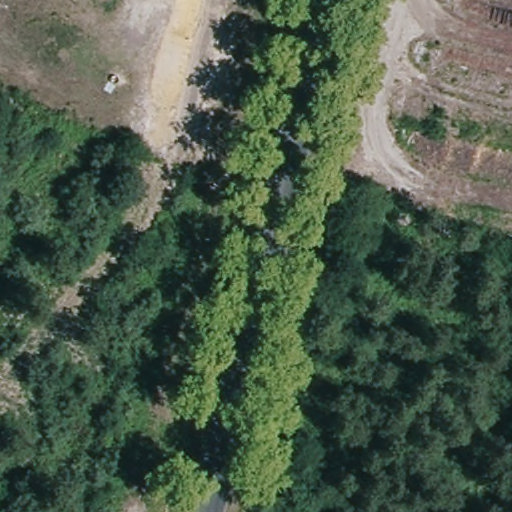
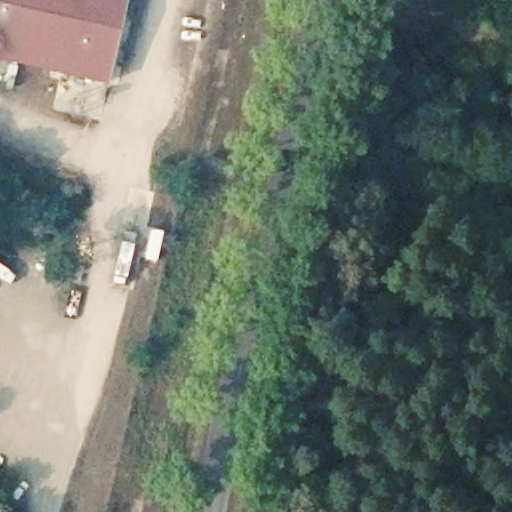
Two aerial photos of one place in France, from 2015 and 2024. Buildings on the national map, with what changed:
new [(110,80),(0,55),(0,0),(128,0),(110,80)]

